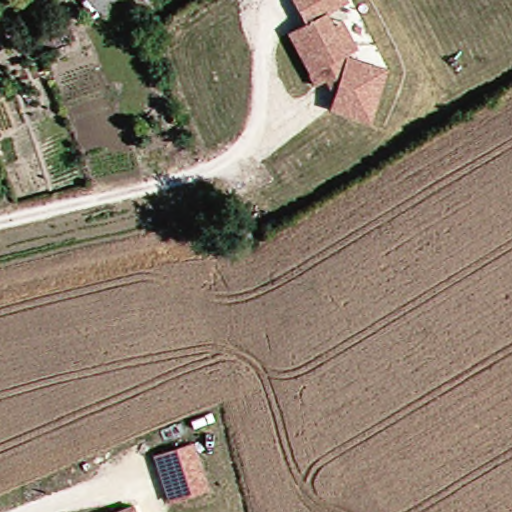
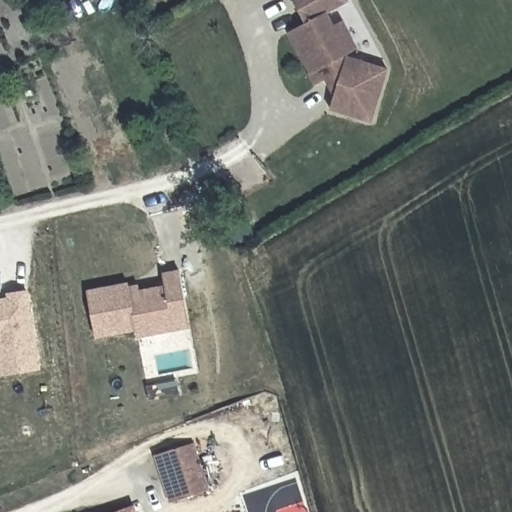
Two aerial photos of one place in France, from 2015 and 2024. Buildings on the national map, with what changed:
unchanged [(348,1),(327,12),(334,26),(343,21),(358,49),(349,54),(348,56),(388,69),(371,121),(330,109),(338,83),(334,75),(322,81),(315,85),(287,32),(305,22),(293,0),(347,0),(348,1)]
new [(173,332),(136,339),(135,332),(95,340),(88,295),(128,288),(129,296),(164,290),(161,279),(178,276),(183,303),(188,330),(173,332)]
new [(136,290),(138,295),(129,296),(129,291),(136,290)]
new [(0,370),(0,304),(10,302),(11,308),(9,297),(27,295),(39,370),(1,376),(0,370)]
unchanged [(207,490),(172,501),(156,455),(191,443),(207,490)]
unchanged [(137,512),(115,512),(134,505),(137,512)]

